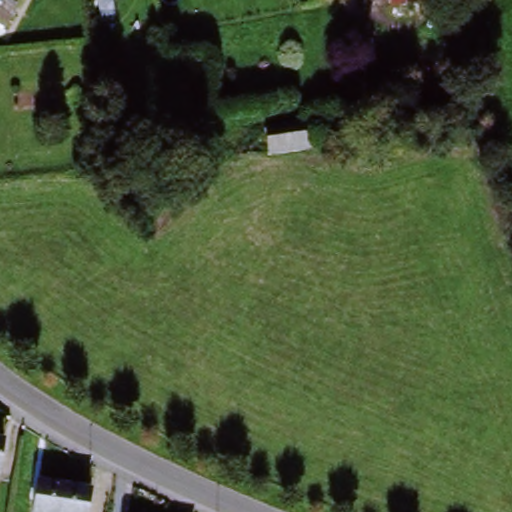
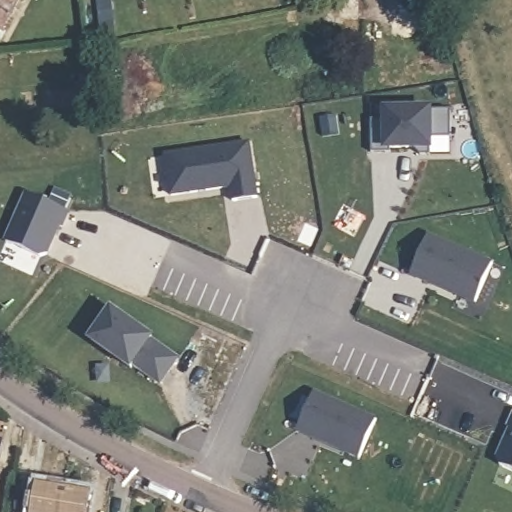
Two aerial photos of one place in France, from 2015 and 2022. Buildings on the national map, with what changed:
unchanged [(0,0),(18,0),(2,30),(0,29),(0,0)]
unchanged [(417,9),(391,12),(389,0),(415,0),(417,9)]
new [(383,121),(384,108),(433,109),(434,113),(452,111),(452,157),(419,156),(420,151),(392,150),(392,154),(373,154),(372,122),(383,121)]
demolished [(310,134),(312,151),(264,156),(262,138),(310,134)]
new [(261,198),(234,202),(232,187),(172,198),(164,156),(250,144),(261,198)]
new [(72,213),(67,227),(63,225),(50,254),(38,257),(5,241),(25,194),(72,213)]
new [(494,263),(475,304),(412,277),(430,234),(494,263)]
new [(154,338),(181,360),(162,386),(136,367),(133,369),(88,341),(111,307),(154,338)]
new [(377,419),(360,460),(297,431),(315,391),(377,419)]
new [(496,464),(510,429),(507,427),(512,416),(512,471),(496,464)]
demolished [(0,450),(5,451),(0,481),(0,450)]
unchanged [(31,512),(37,485),(60,490),(87,496),(84,512),(31,512)]

